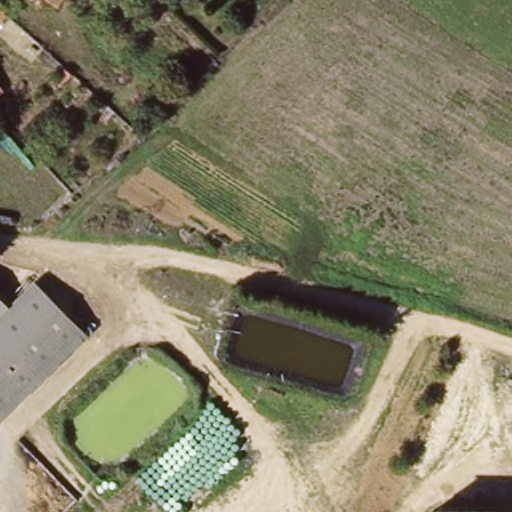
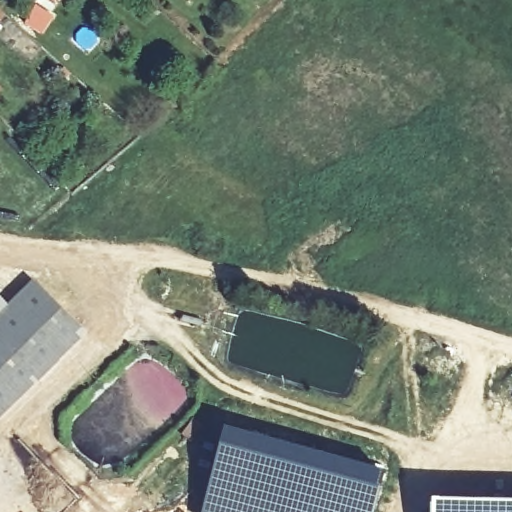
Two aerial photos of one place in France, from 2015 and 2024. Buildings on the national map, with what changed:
unchanged [(51,2),(43,12),(23,0),(72,0),(66,11),(51,2)]
unchanged [(0,16),(1,17),(0,18),(0,16)]
unchanged [(0,93),(0,86),(4,90),(0,93)]
unchanged [(37,289),(84,335),(0,411),(0,322),(8,316),(37,289)]
unchanged [(0,307),(8,316),(0,322),(0,307)]
new [(321,456),(386,472),(375,512),(200,512),(224,429),(321,456)]
unchanged [(512,505),(512,512),(430,512),(431,504),(512,505)]

